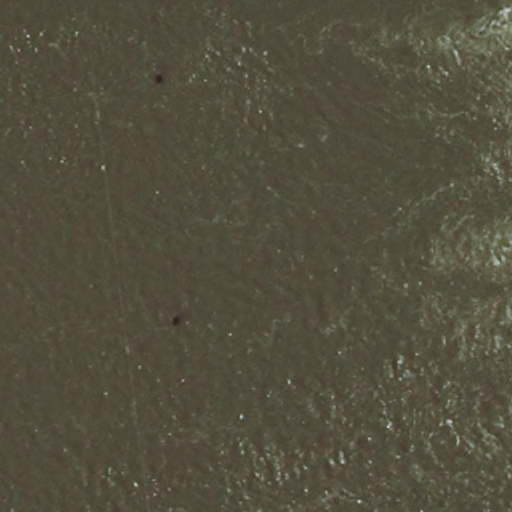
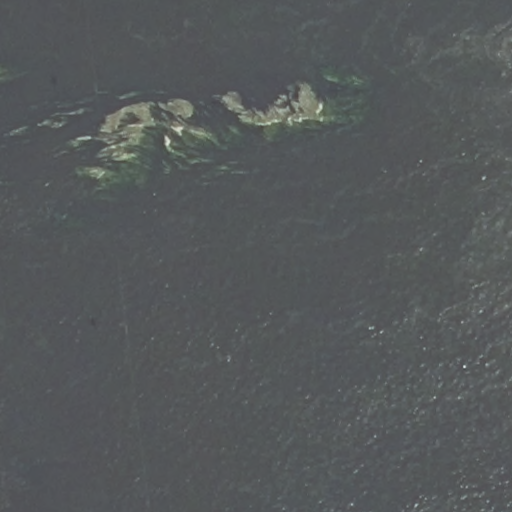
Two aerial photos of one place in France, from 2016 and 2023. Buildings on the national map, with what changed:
[]

